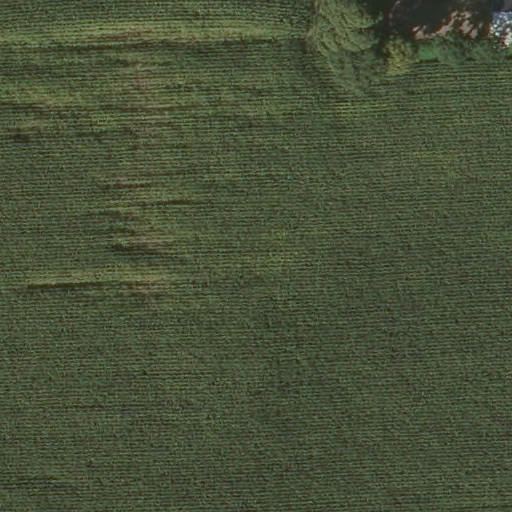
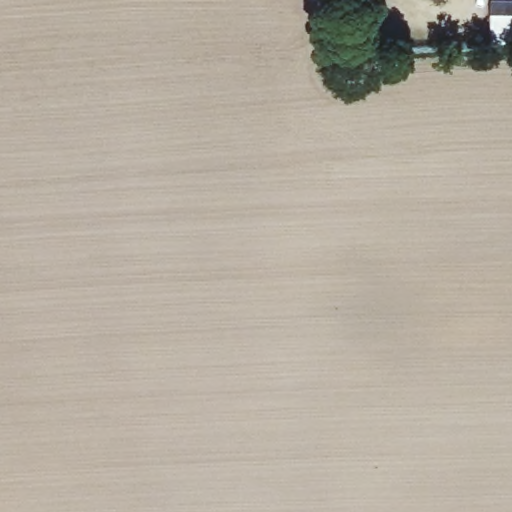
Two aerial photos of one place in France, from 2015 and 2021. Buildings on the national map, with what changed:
unchanged [(493,0),(512,0),(512,25),(495,25),(493,0)]

